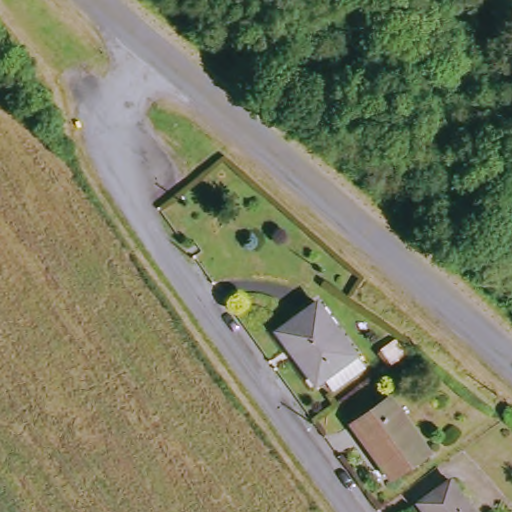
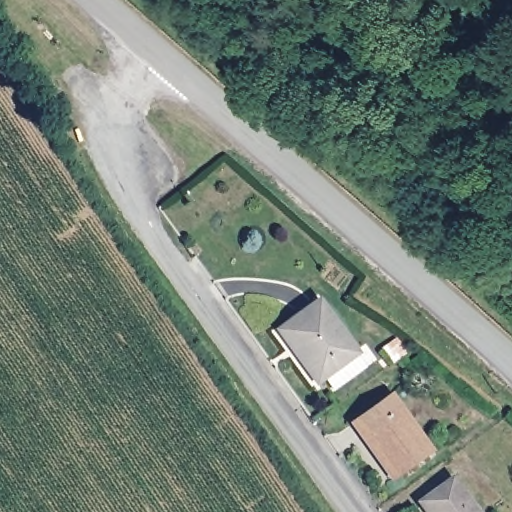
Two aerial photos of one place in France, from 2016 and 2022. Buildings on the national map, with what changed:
unchanged [(328,381),(281,329),(319,299),(361,355),(328,381)]
unchanged [(399,481),(357,426),(396,397),(437,452),(399,481)]
unchanged [(456,481),(478,512),(433,512),(427,503),(456,481)]

